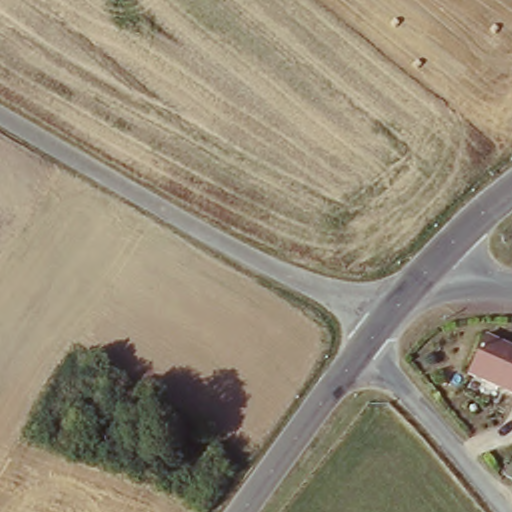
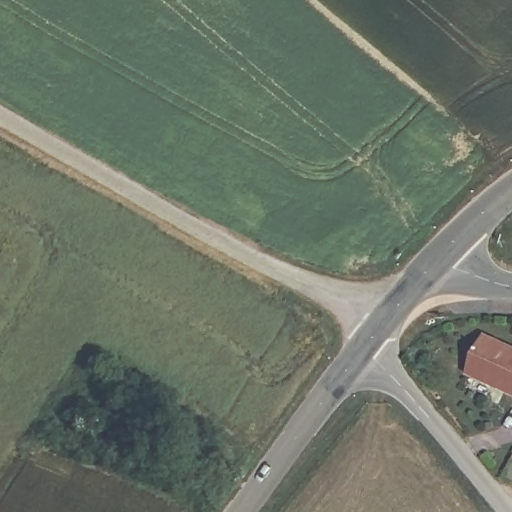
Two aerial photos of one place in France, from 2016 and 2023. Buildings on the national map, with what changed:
unchanged [(512,390),(469,371),(489,331),(512,341),(512,390)]
unchanged [(512,485),(495,477),(507,453),(512,455),(512,485)]

